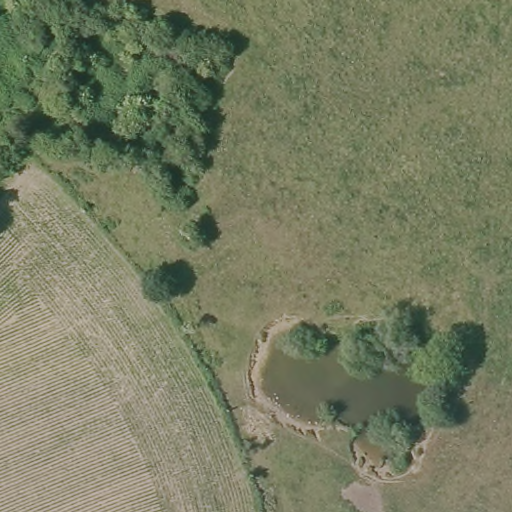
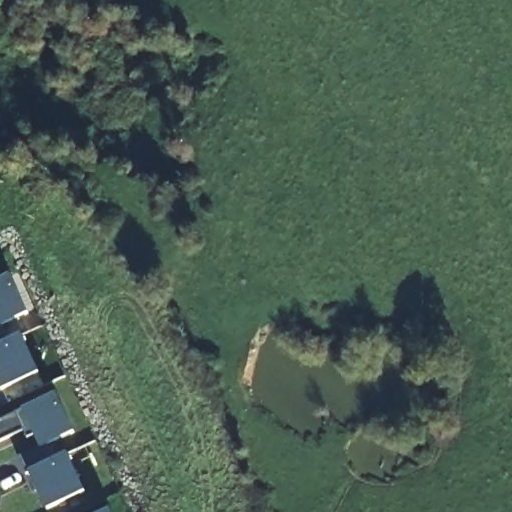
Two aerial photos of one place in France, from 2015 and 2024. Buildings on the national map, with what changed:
new [(27,313),(1,325),(8,341),(20,335),(38,372),(1,389),(0,387),(0,279),(10,275),(27,313)]
new [(73,431),(47,443),(54,459),(67,453),(84,490),(47,508),(30,471),(25,473),(17,456),(40,445),(35,434),(27,437),(23,429),(0,440),(0,418),(55,393),(73,431)]
new [(111,512),(101,512),(109,509),(111,512)]

